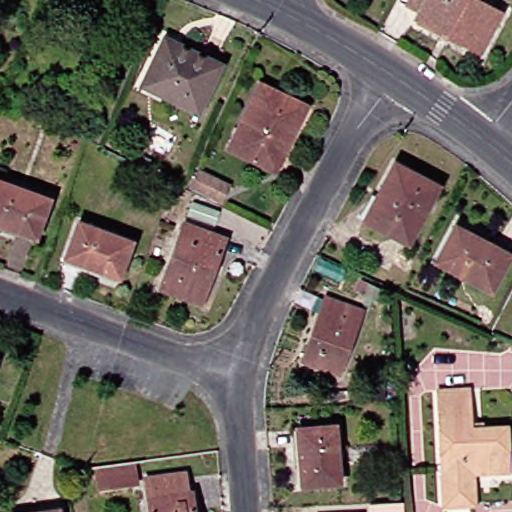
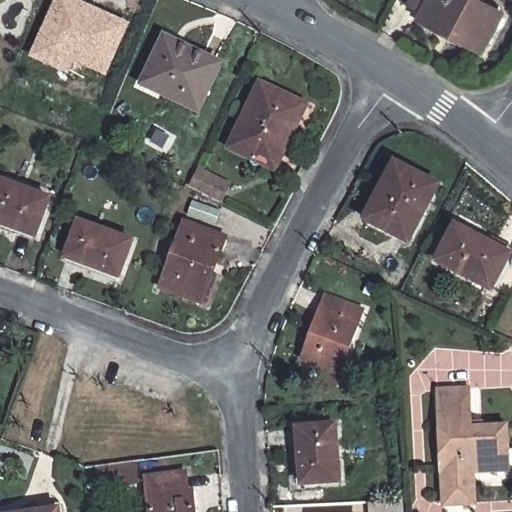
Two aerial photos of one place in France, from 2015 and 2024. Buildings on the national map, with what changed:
new [(76,61),(69,74),(29,56),(55,0),(81,0),(130,23),(107,76),(76,61)]
unchanged [(483,52),(421,18),(424,12),(411,4),(413,0),(477,0),(503,14),(483,52)]
unchanged [(217,62),(197,109),(144,88),(163,39),(217,62)]
unchanged [(310,103),(283,169),(235,149),(263,83),(310,103)]
unchanged [(436,187),(406,243),(364,220),(394,165),(436,187)]
unchanged [(226,187),(218,203),(190,188),(197,173),(226,187)]
unchanged [(51,198),(37,237),(0,223),(0,181),(51,198)]
unchanged [(202,299),(162,284),(183,222),(225,236),(202,299)]
unchanged [(130,242),(119,277),(65,258),(76,224),(130,242)]
unchanged [(490,290),(436,259),(453,227),(509,256),(490,290)]
unchanged [(337,375),(301,360),(324,299),(359,312),(337,375)]
unchanged [(483,474),(485,504),(448,507),(439,392),(472,389),(475,427),(511,424),(512,430),(512,471),(503,472),(483,474)]
unchanged [(342,483),(306,486),(301,429),(338,427),(342,483)]
unchanged [(98,486),(97,472),(125,469),(127,484),(98,486)]
unchanged [(190,491),(195,489),(198,512),(152,512),(147,477),(188,472),(190,491)]
unchanged [(61,512),(34,512),(61,509),(61,512)]

